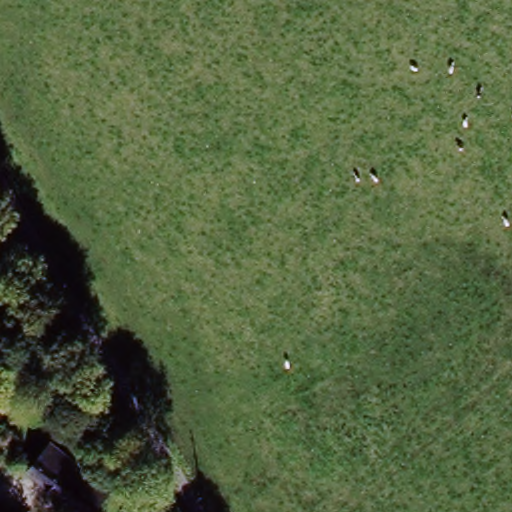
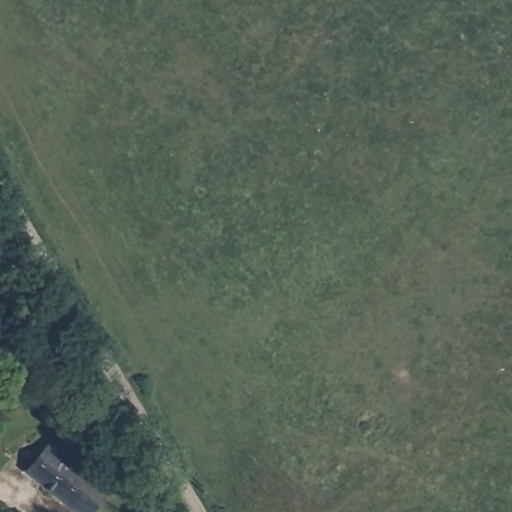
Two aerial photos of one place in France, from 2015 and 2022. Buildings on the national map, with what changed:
unchanged [(74,512),(30,481),(52,451),(75,467),(107,492),(95,512),(74,512)]

